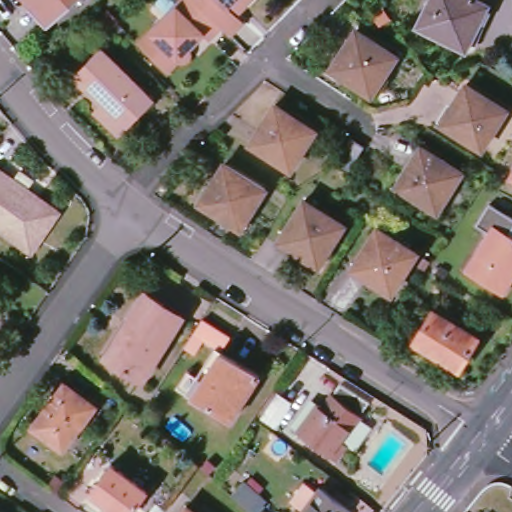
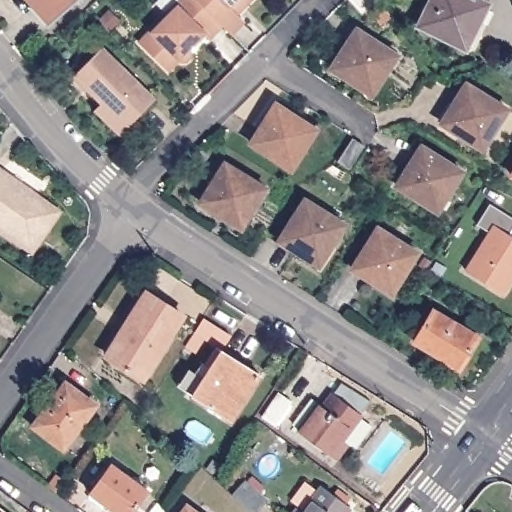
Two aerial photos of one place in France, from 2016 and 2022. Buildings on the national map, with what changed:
unchanged [(29,0),(78,0),(50,24),(29,0)]
unchanged [(209,29),(194,44),(195,46),(195,49),(195,51),(194,53),(193,54),(191,55),(189,56),(188,56),(186,56),(185,56),(184,55),(183,55),(171,69),(141,40),(180,0),(205,0),(226,21),(213,34),(209,29)]
unchanged [(236,29),(206,0),(250,0),(249,1),(241,10),(248,17),(236,29)]
unchanged [(418,27),(431,0),(480,0),(489,4),(467,51),(418,27)]
unchanged [(356,30),(397,56),(371,95),(331,69),(356,30)]
unchanged [(96,110),(103,104),(74,76),(101,49),(154,100),(128,128),(120,134),(96,110)]
unchanged [(466,84),(507,110),(482,149),(442,124),(466,84)]
unchanged [(276,104),(316,130),(291,169),(251,144),(276,104)]
unchanged [(364,147),(349,170),(337,162),(352,139),(364,147)]
unchanged [(438,212),(397,186),(422,146),(462,173),(438,212)]
unchanged [(224,164),(266,189),(241,229),(200,204),(224,164)]
unchanged [(59,215),(35,249),(0,225),(0,166),(38,193),(35,199),(59,215)]
unchanged [(279,241),(304,200),(344,225),(319,266),(279,241)]
unchanged [(490,233),(477,224),(490,204),(512,218),(512,281),(503,295),(466,271),(490,233)]
unchanged [(352,270),(378,229),(417,253),(392,294),(352,270)]
unchanged [(143,378),(106,356),(146,293),(182,314),(143,378)]
unchanged [(479,338),(463,364),(451,357),(447,362),(414,343),(434,311),(479,338)]
unchanged [(235,340),(227,354),(208,343),(199,359),(191,352),(208,324),(235,340)]
unchanged [(236,424),(192,396),(221,352),(264,379),(236,424)]
unchanged [(63,448),(33,425),(65,382),(94,405),(63,448)]
unchanged [(341,383),(368,402),(342,439),(346,444),(336,459),(299,432),(300,429),(294,426),(314,399),(324,407),(341,383)]
unchanged [(275,425),(261,416),(278,392),(291,402),(275,425)]
unchanged [(132,512),(115,512),(106,506),(103,509),(87,497),(111,464),(148,491),(132,512)]
unchanged [(266,503),(258,512),(252,512),(232,494),(243,482),(266,503)]
unchanged [(346,512),(303,512),(323,487),(350,507),(346,512)]
unchanged [(188,504),(197,512),(182,512),(188,504)]
unchanged [(298,509),(302,512),(295,512),(298,509)]

